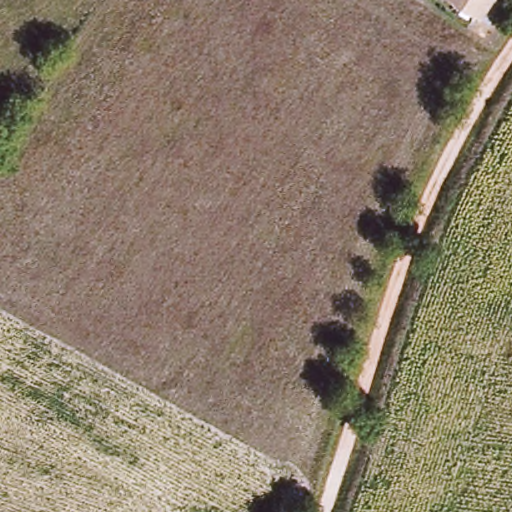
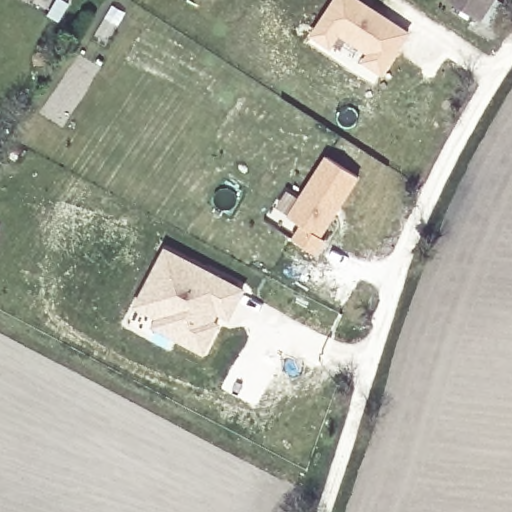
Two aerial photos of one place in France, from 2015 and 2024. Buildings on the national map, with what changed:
new [(391,18),(409,30),(381,70),(364,58),(369,50),(339,30),(330,43),(312,32),(334,0),(363,0),(379,11),(391,18)]
unchanged [(448,0),(495,0),(480,22),(448,0)]
new [(320,233),(324,236),(315,251),(293,236),(302,221),(288,213),(327,153),(358,173),(339,203),(332,213),(320,233)]
new [(167,246),(245,288),(230,315),(215,306),(209,317),(219,322),(205,349),(155,322),(159,313),(137,302),(146,284),(167,246)]

